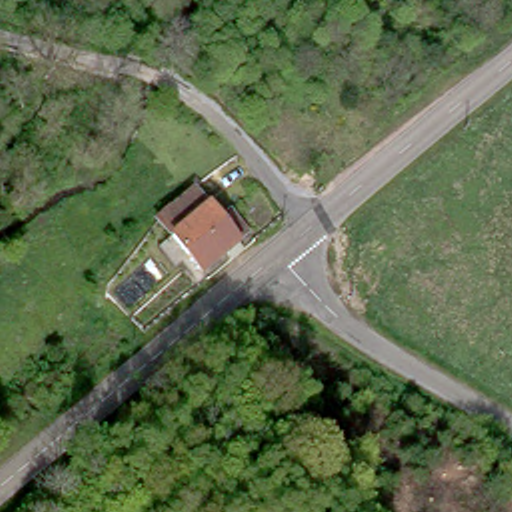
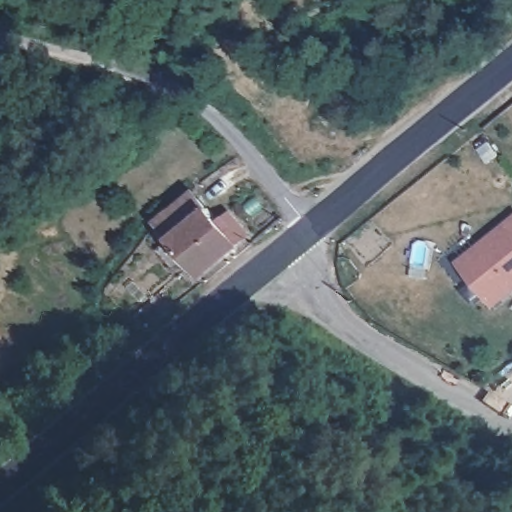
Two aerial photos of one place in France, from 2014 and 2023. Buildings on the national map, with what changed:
unchanged [(221,211),(240,231),(230,240),(231,242),(198,273),(166,239),(151,222),(184,191),(191,198),(211,220),(221,211)]
new [(454,260),(512,214),(512,292),(492,307),(454,260)]

